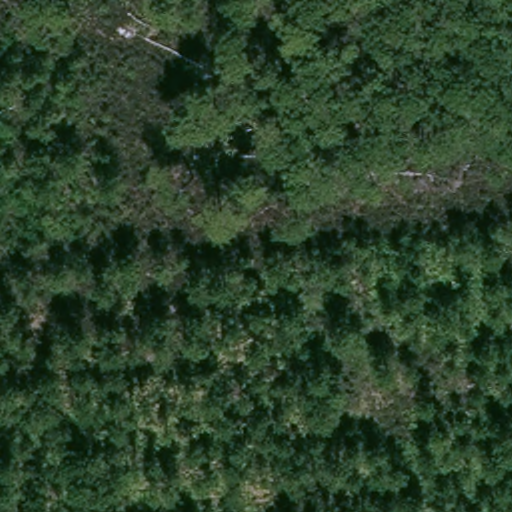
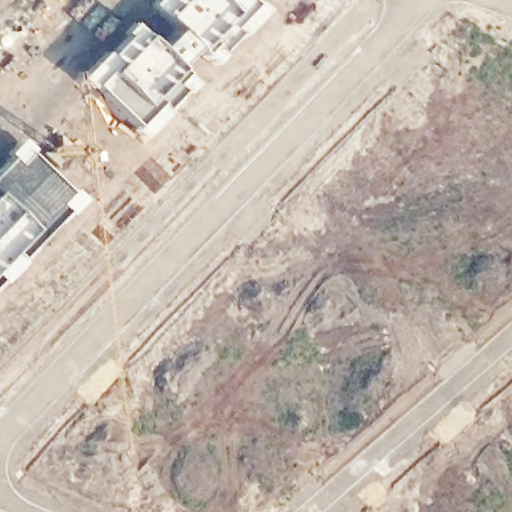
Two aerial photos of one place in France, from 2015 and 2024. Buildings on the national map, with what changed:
new [(195,49),(177,68),(194,83),(142,137),(79,75),(131,21),(145,36),(162,18),(147,4),(151,0),(251,0),(263,12),(211,66),(195,49)]
new [(0,169),(22,146),(77,200),(0,279),(0,169)]

